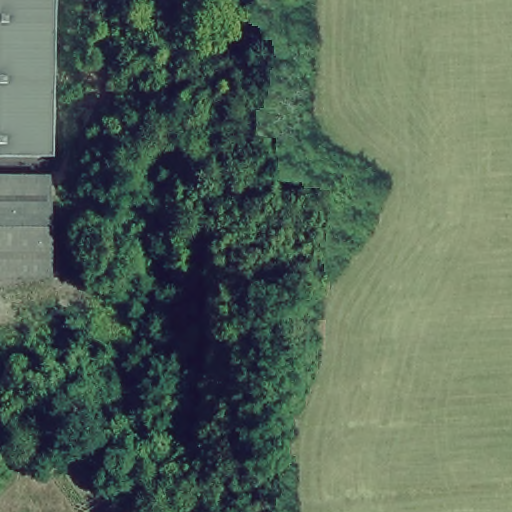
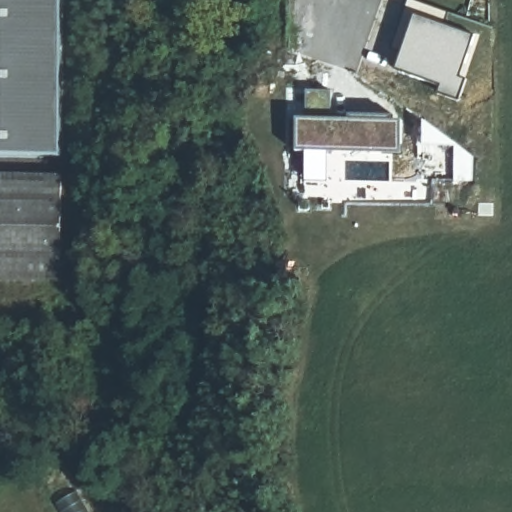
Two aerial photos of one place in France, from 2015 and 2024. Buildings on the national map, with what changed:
unchanged [(59,159),(0,159),(0,0),(61,0),(59,159)]
new [(473,37),(458,77),(467,81),(462,103),(436,94),(439,87),(393,72),(412,16),(473,37)]
new [(332,88),(334,111),(392,112),(395,119),(402,119),(402,156),(392,156),(395,180),(305,178),(305,86),(332,88)]
unchanged [(59,281),(0,281),(0,178),(60,178),(59,281)]

